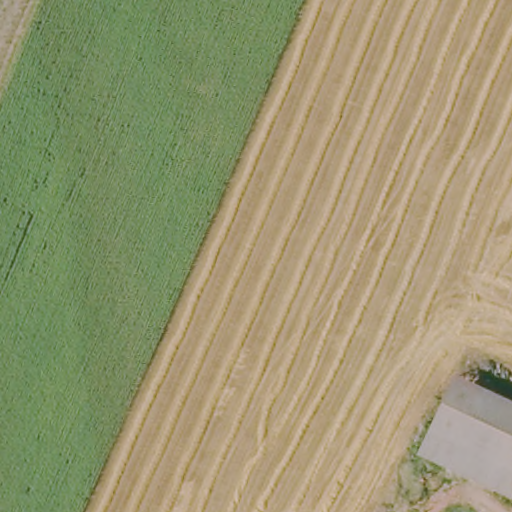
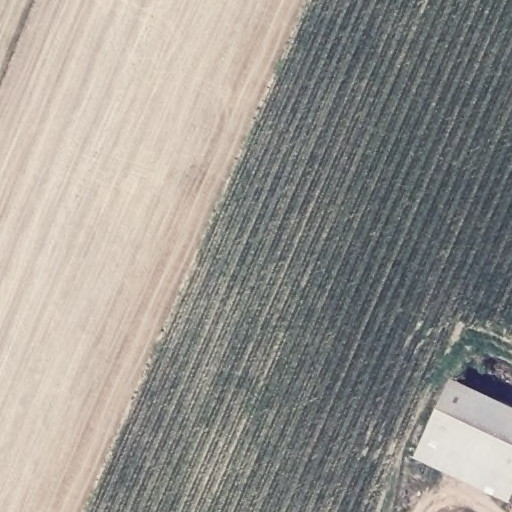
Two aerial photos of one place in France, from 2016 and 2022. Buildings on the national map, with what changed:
unchanged [(512,404),(512,495),(425,454),(459,380),(512,404)]

